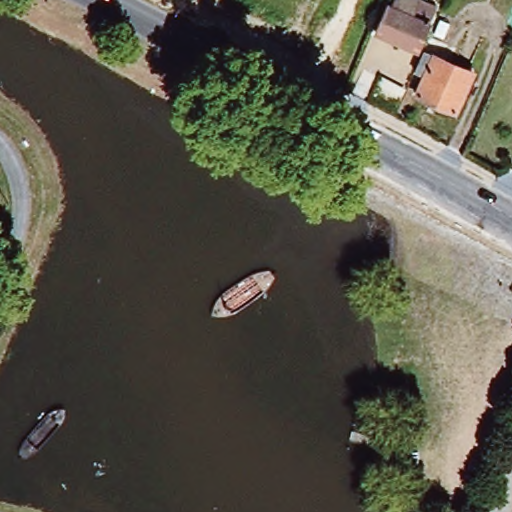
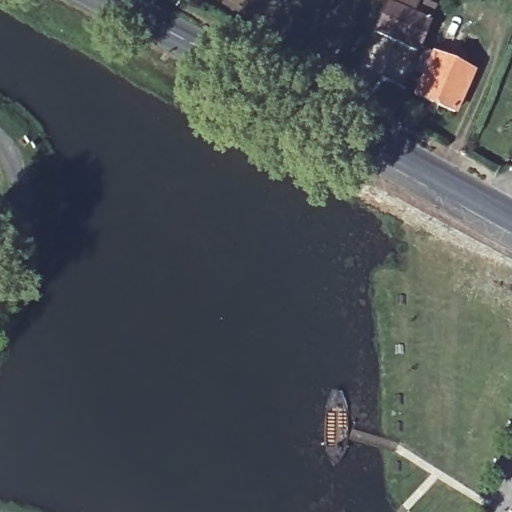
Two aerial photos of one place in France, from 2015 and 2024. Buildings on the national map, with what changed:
unchanged [(400,9),(402,6),(405,0),(424,0),(428,2),(421,18),(437,26),(425,53),(384,36),(397,8),(400,9)]
unchanged [(431,79),(422,76),(432,54),(481,76),(464,116),(423,98),(431,79)]
unchanged [(421,499),(422,481),(452,484),(450,502),(421,499)]

